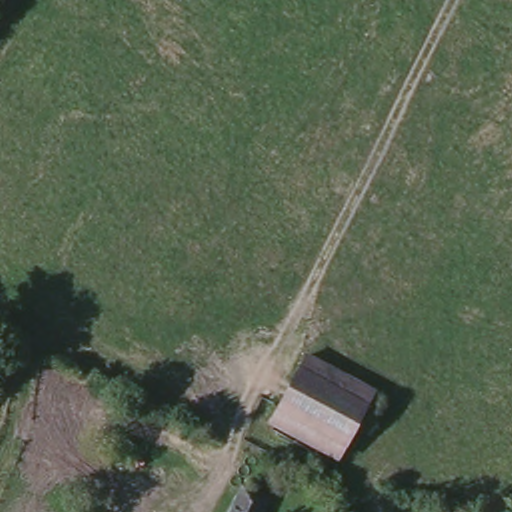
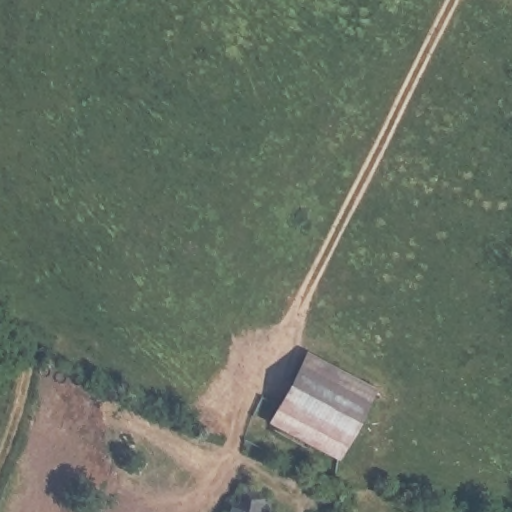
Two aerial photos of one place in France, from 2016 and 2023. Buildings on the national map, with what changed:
unchanged [(375,390),(339,459),(273,423),(309,355),(375,390)]
unchanged [(223,512),(239,481),(260,493),(251,512),(223,512)]
unchanged [(271,512),(251,512),(260,493),(276,502),(271,512)]

